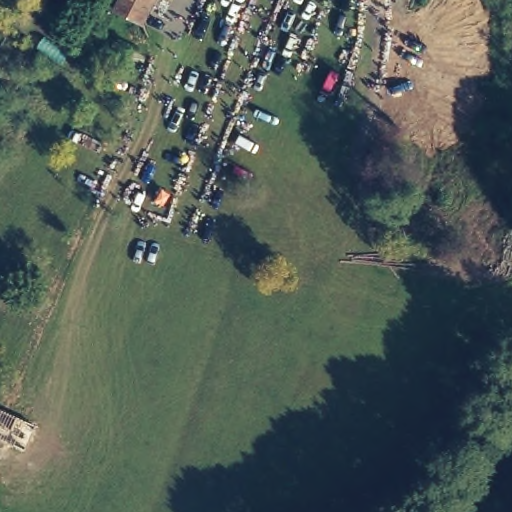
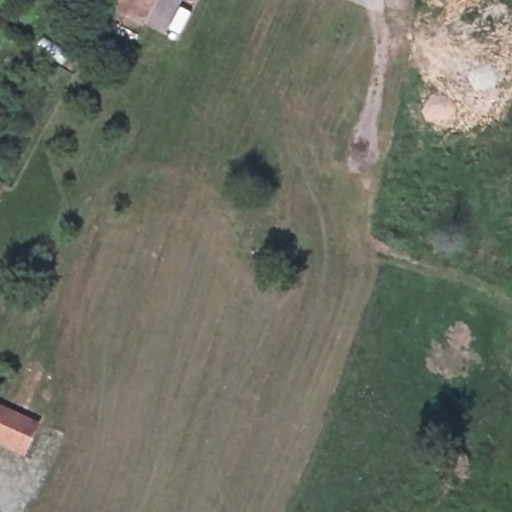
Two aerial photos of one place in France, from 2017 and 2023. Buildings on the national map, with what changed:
unchanged [(144,19),(117,5),(120,0),(154,0),(144,19)]
new [(24,448),(0,437),(0,407),(35,423),(24,448)]

